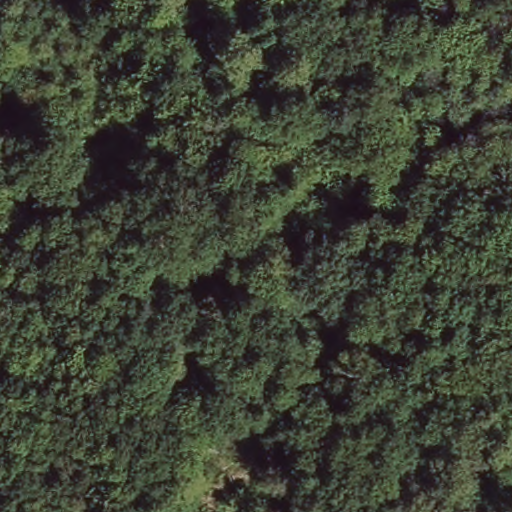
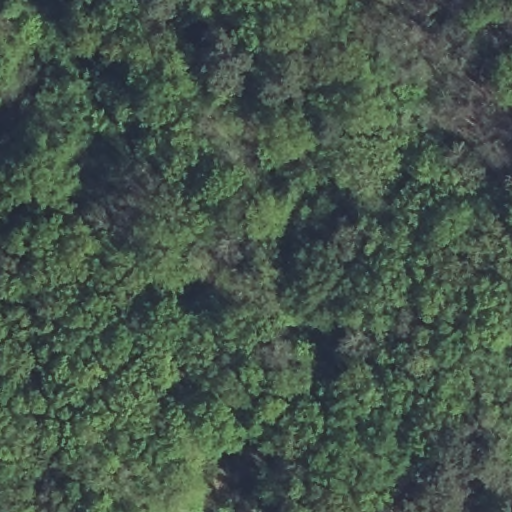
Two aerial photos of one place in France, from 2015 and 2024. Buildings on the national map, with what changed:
unchanged [(307,430),(329,421),(340,442),(320,451),(307,430)]

